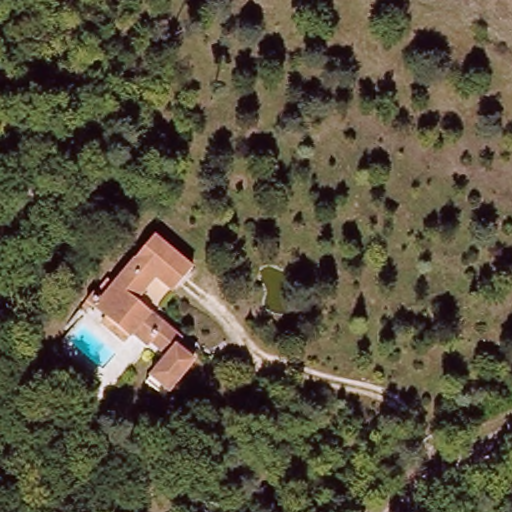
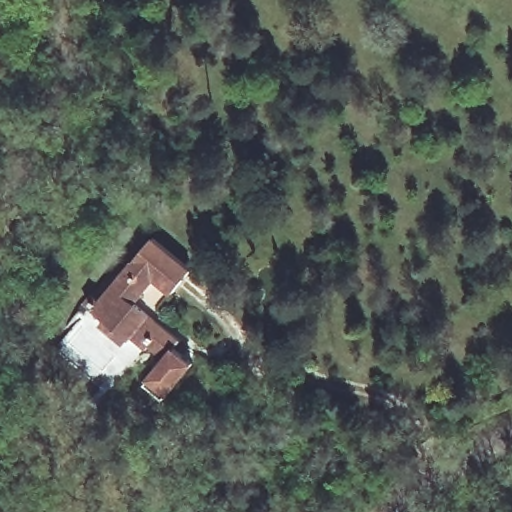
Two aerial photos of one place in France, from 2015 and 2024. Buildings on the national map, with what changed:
unchanged [(140,256),(155,241),(193,270),(173,293),(156,281),(140,256)]
unchanged [(144,379),(150,373),(169,355),(156,342),(149,346),(134,336),(125,342),(101,322),(109,316),(89,298),(110,277),(116,281),(140,256),(156,281),(139,304),(180,339),(176,347),(193,362),(168,391),(163,396),(144,379)]

